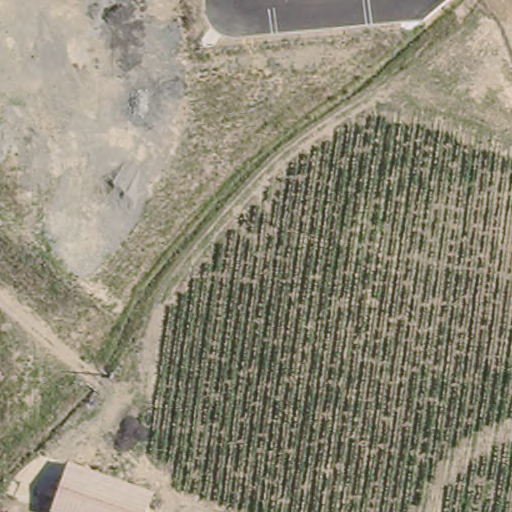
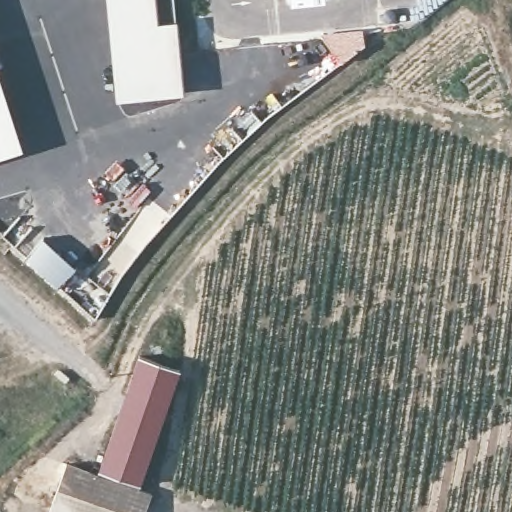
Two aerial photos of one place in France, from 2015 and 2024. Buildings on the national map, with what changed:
new [(118,100),(108,0),(176,0),(186,95),(118,100)]
new [(0,157),(0,74),(25,150),(0,157)]
new [(141,352),(182,365),(144,481),(103,468),(141,352)]
unchanged [(147,493),(142,512),(49,512),(65,465),(147,493)]

